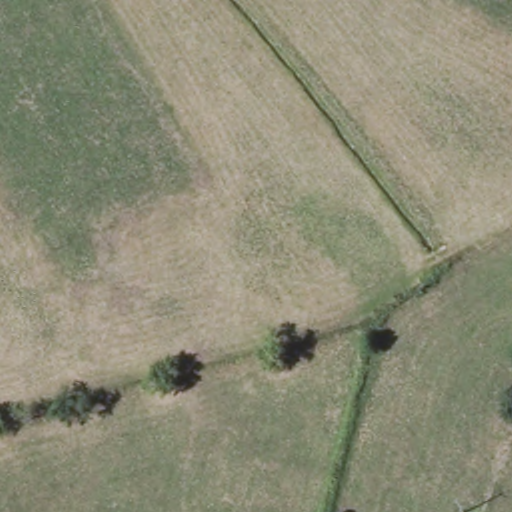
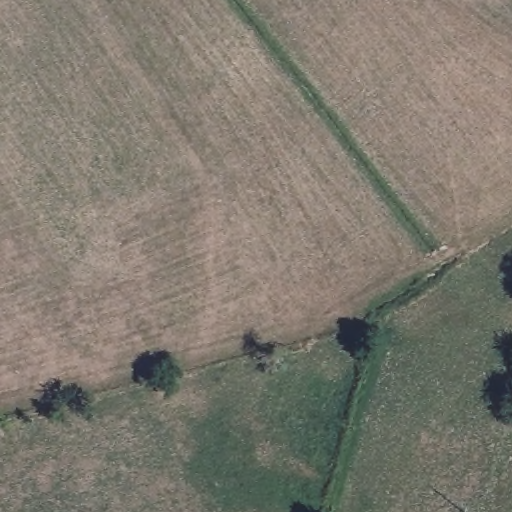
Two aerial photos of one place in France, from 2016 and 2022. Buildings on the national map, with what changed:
[]

